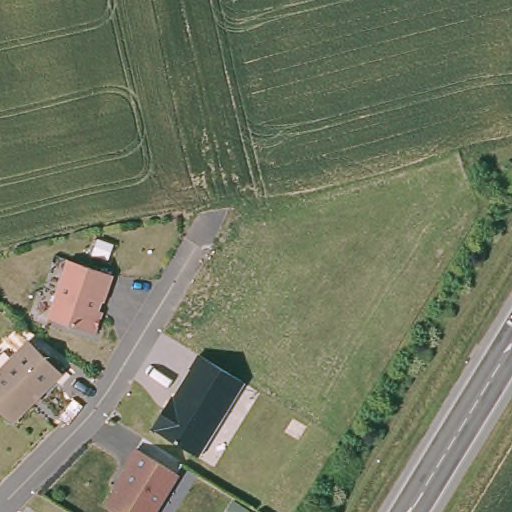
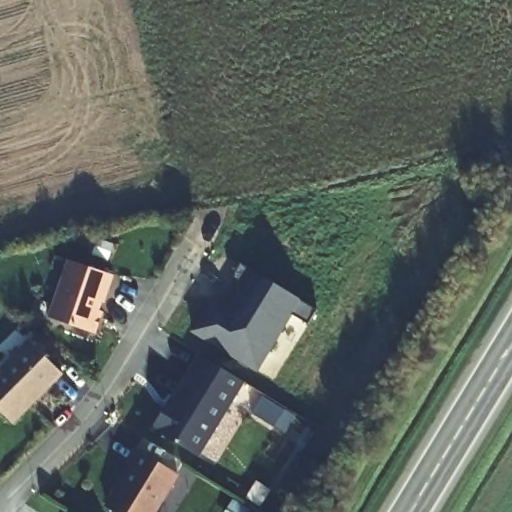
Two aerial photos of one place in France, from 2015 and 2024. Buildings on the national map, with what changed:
unchanged [(97,271),(109,275),(103,293),(97,311),(102,313),(94,334),(49,319),(69,261),(97,271)]
new [(190,331),(210,300),(224,309),(240,281),(234,276),(241,262),(315,308),(307,322),(292,313),(258,371),(190,331)]
unchanged [(29,342),(60,374),(12,424),(0,412),(0,371),(29,342)]
unchanged [(246,383),(199,458),(152,430),(197,354),(246,383)]
unchanged [(127,465),(136,450),(177,475),(154,512),(111,512),(106,509),(131,467),(127,465)]

